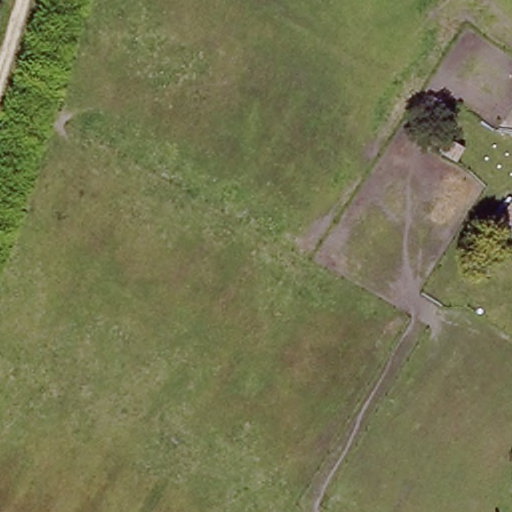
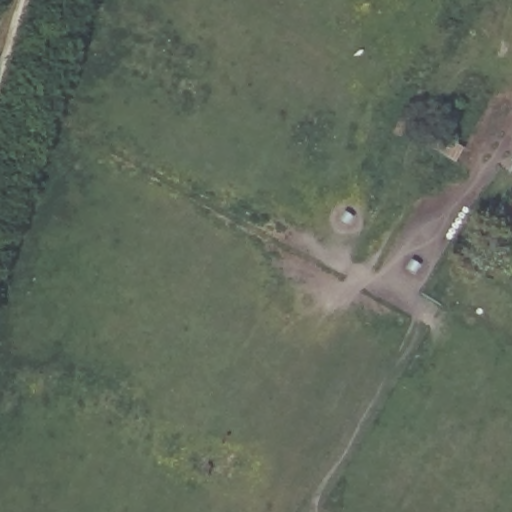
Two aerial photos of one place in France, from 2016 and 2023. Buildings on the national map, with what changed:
unchanged [(459,160),(432,147),(438,135),(465,147),(459,160)]
unchanged [(499,230),(512,211),(512,238),(499,230)]

